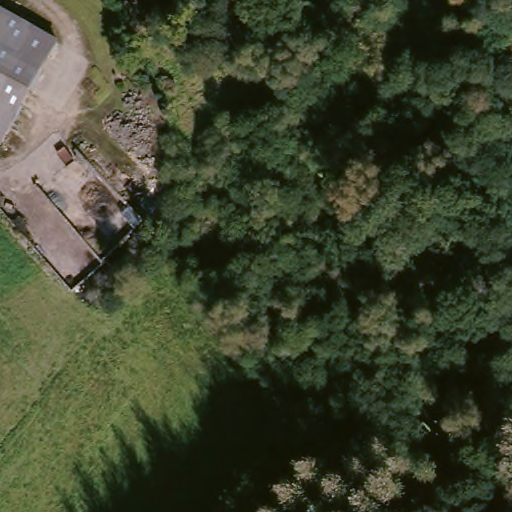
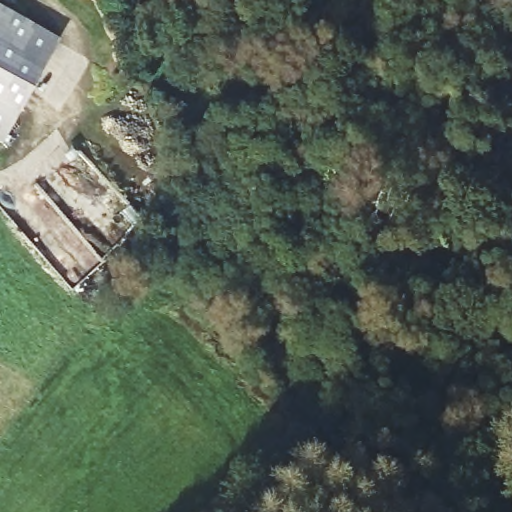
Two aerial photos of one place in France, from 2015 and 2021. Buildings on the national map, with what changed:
unchanged [(2,145),(0,144),(0,13),(55,46),(2,145)]

